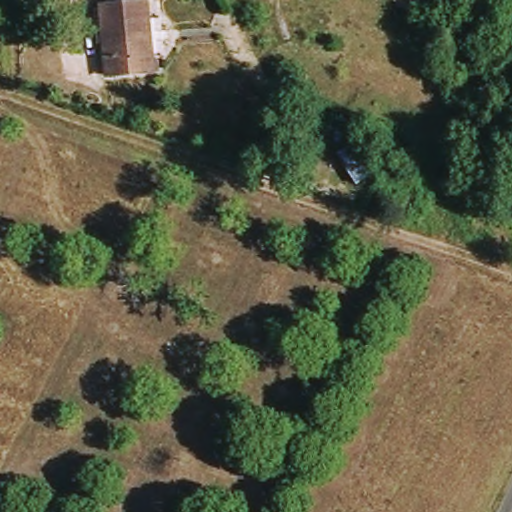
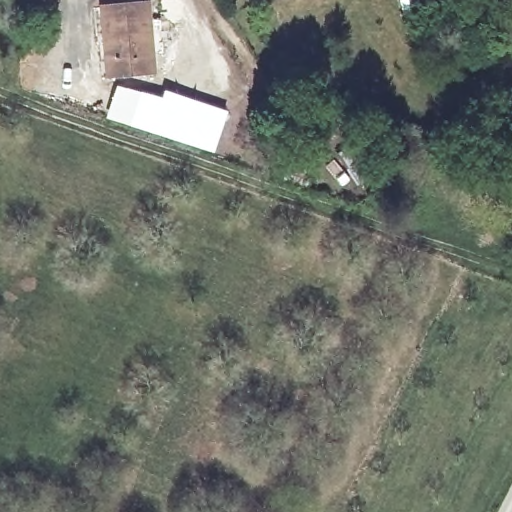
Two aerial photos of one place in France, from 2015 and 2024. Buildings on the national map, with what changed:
unchanged [(159,72),(111,81),(100,12),(147,3),(159,72)]
new [(115,84),(161,95),(163,89),(228,110),(215,154),(105,119),(115,84)]

